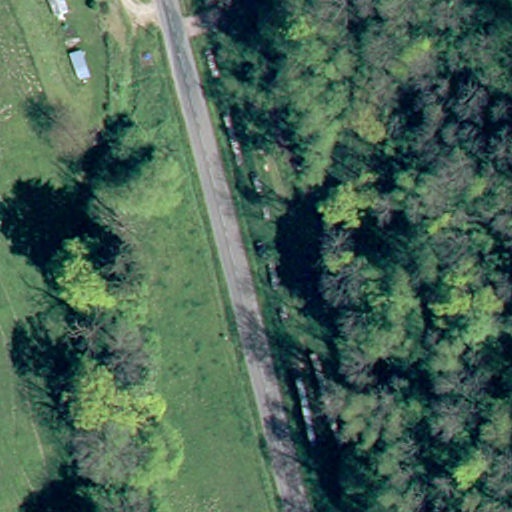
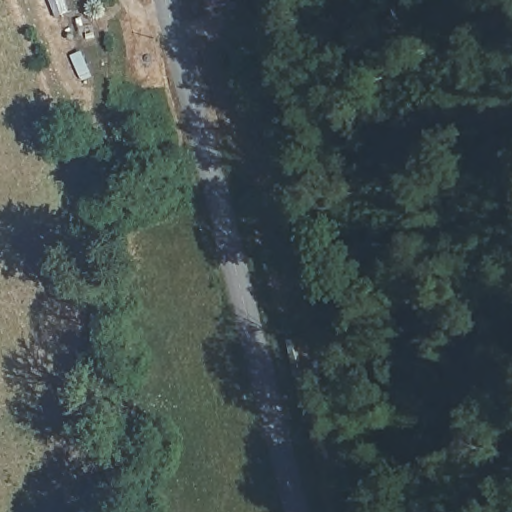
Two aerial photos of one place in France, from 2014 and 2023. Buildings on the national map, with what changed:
unchanged [(210,0),(231,0),(233,9),(213,14),(210,0)]

